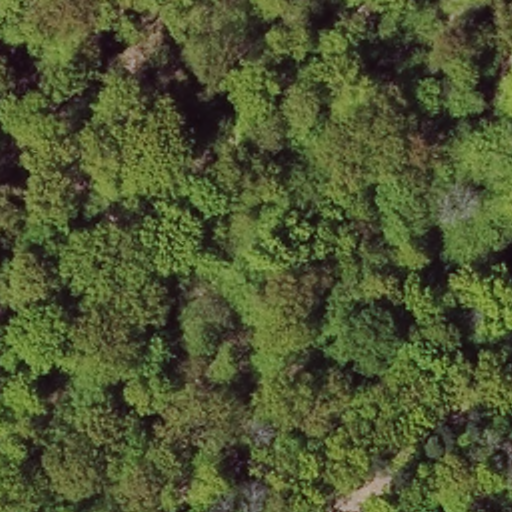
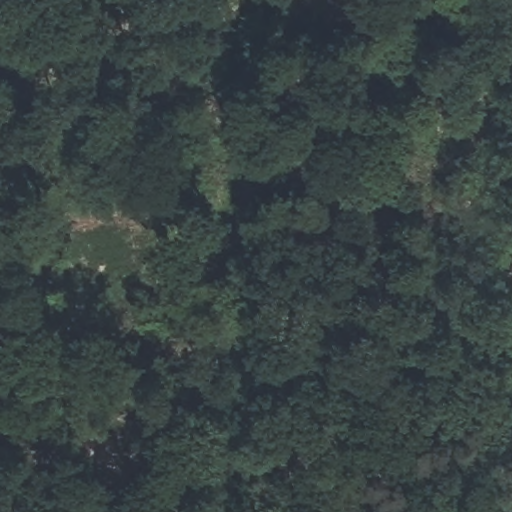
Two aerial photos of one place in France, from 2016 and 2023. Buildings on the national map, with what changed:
[]

